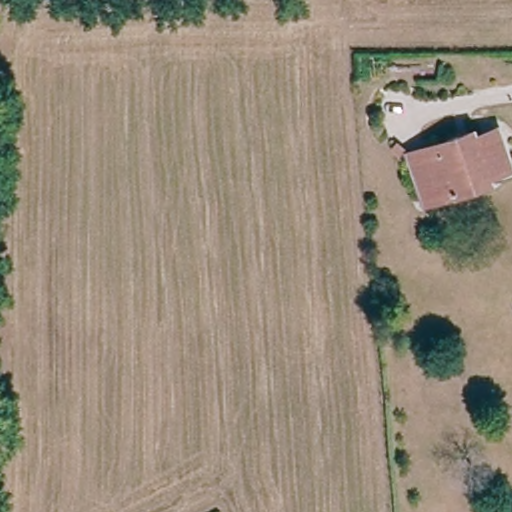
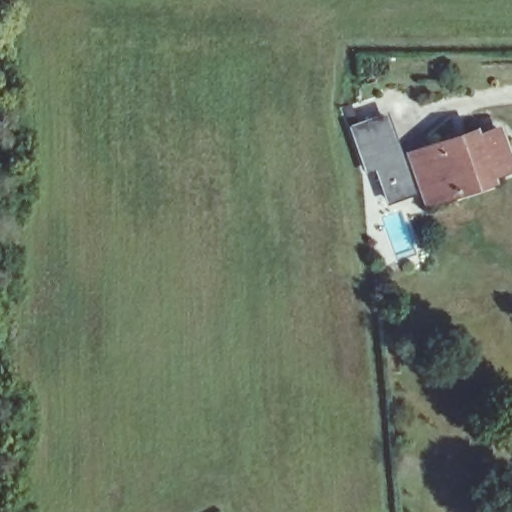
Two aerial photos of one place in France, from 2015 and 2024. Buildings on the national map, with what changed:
new [(387,205),(375,170),(365,173),(348,125),(386,112),(417,194),(387,205)]
unchanged [(430,205),(412,155),(426,150),(460,139),(480,132),(484,142),(504,135),(512,157),(512,169),(494,175),(496,184),(479,190),(455,196),(430,205)]

